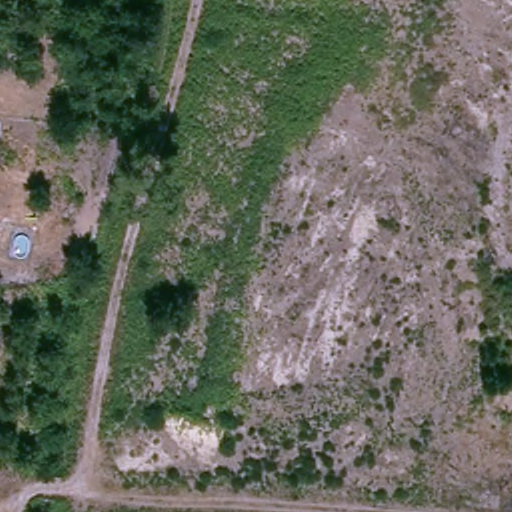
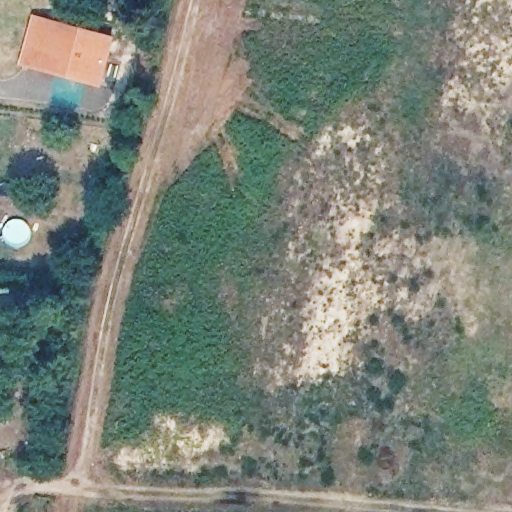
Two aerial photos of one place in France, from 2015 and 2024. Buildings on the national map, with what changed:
new [(118,38),(104,87),(21,64),(34,14),(118,38)]

